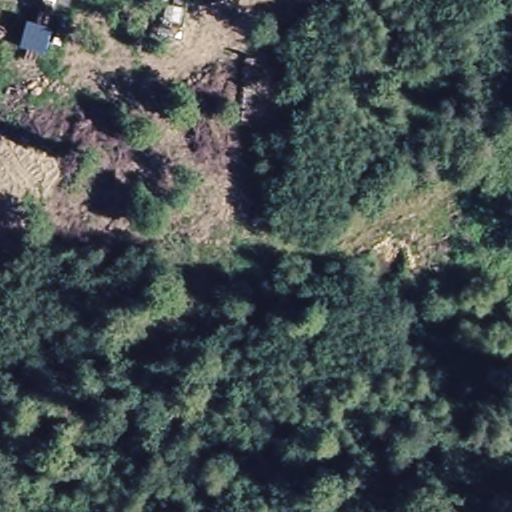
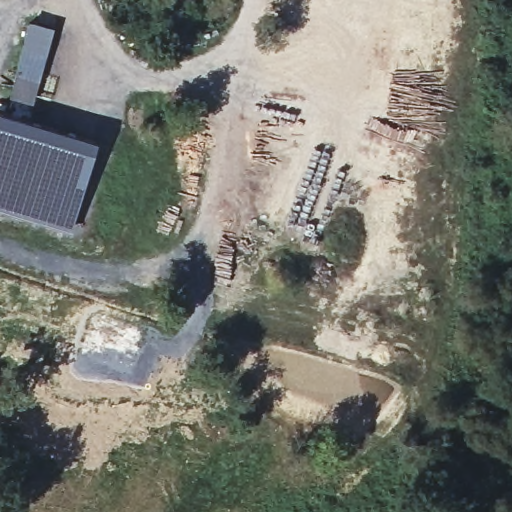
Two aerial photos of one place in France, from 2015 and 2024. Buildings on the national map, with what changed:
unchanged [(54,25),(45,52),(21,46),(29,19),(54,25)]
new [(71,230),(0,210),(0,109),(98,139),(71,230)]

